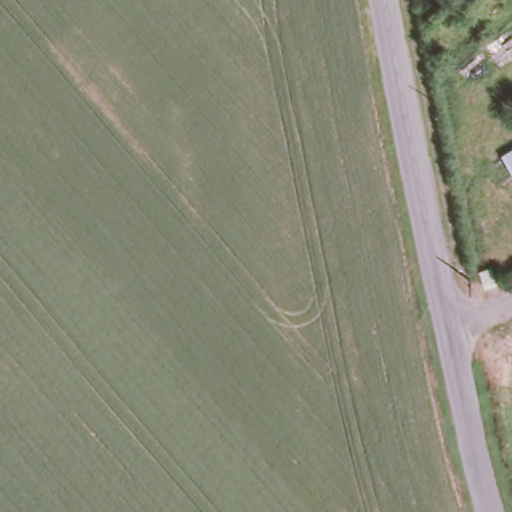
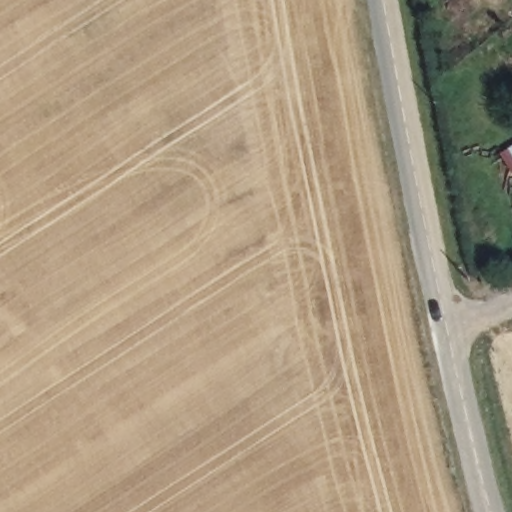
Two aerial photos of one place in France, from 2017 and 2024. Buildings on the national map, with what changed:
unchanged [(482,304),(476,292),(491,283),(498,295),(482,304)]

